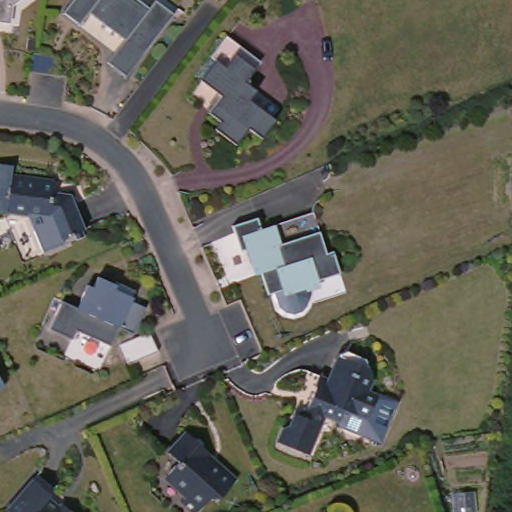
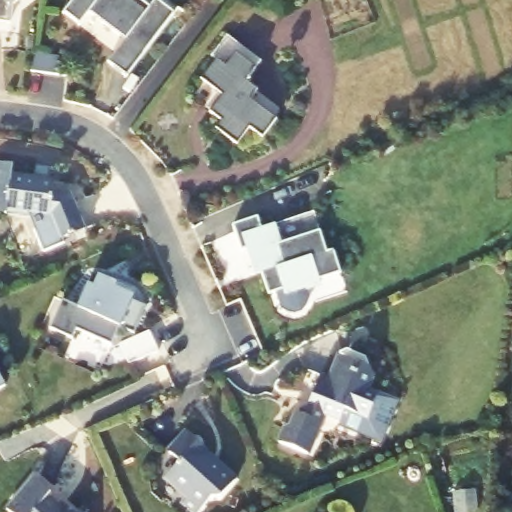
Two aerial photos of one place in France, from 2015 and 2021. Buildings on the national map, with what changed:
unchanged [(0,4),(0,0),(5,0),(0,4)]
unchanged [(74,0),(138,0),(149,9),(154,2),(173,17),(124,77),(107,62),(125,40),(91,12),(81,24),(66,11),(74,0)]
unchanged [(264,140),(251,129),(239,145),(218,127),(223,121),(210,112),(223,97),(203,80),(219,60),(227,66),(238,54),(257,69),(248,82),(260,91),(253,101),(279,121),(264,140)]
unchanged [(54,61),(51,75),(28,72),(29,57),(54,61)]
unchanged [(14,165),(13,175),(49,180),(47,190),(69,194),(85,231),(61,241),(51,217),(7,211),(6,215),(0,214),(0,163),(14,165)]
unchanged [(261,216),(264,225),(276,222),(282,241),(322,229),(329,250),(338,247),(344,270),(324,277),(324,282),(289,293),(287,287),(272,292),(264,272),(268,271),(264,262),(258,262),(253,246),(246,247),(239,224),(261,216)]
unchanged [(128,328),(114,323),(105,341),(69,326),(65,335),(43,325),(56,297),(72,305),(75,296),(71,293),(77,281),(82,283),(88,269),(105,277),(107,275),(132,285),(126,297),(140,303),(128,328)]
unchanged [(152,347),(122,360),(114,340),(143,327),(152,347)]
unchanged [(309,457),(283,445),(289,432),(297,428),(301,418),(307,421),(324,379),(336,383),(346,358),(354,355),(361,357),(363,362),(361,367),(373,372),(377,382),(371,397),(379,401),(371,420),(349,410),(343,424),(327,417),(309,457)]
unchanged [(8,382),(0,386),(0,369),(8,382)]
unchanged [(219,492),(206,492),(192,507),(177,495),(184,487),(167,472),(176,462),(174,458),(178,455),(166,445),(183,427),(204,445),(199,450),(208,457),(211,455),(234,475),(219,492)]
unchanged [(37,474),(54,488),(48,496),(59,506),(66,498),(83,512),(18,512),(11,506),(37,474)]

